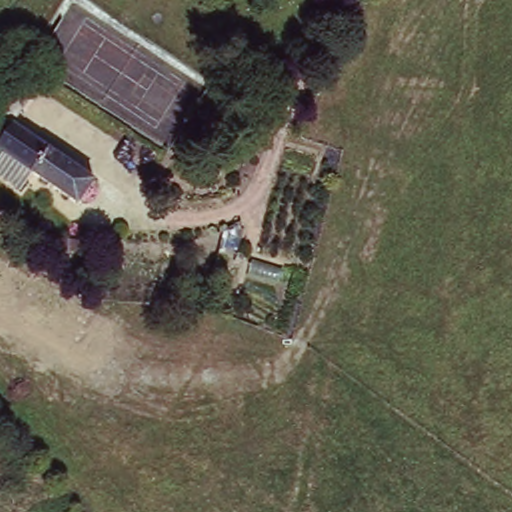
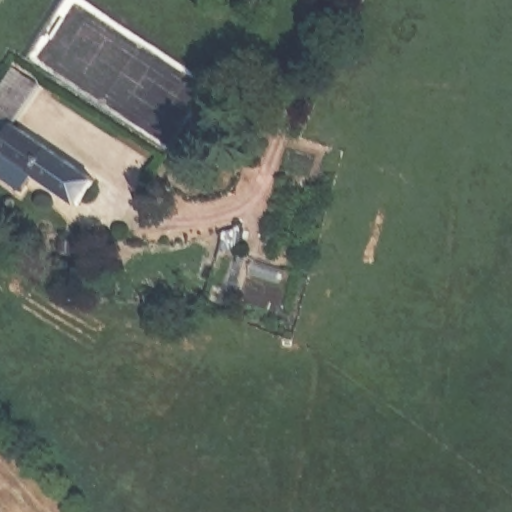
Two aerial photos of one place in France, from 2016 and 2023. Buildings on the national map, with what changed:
unchanged [(0,158),(7,148),(0,143),(0,89),(16,64),(42,82),(17,120),(100,175),(82,199),(36,167),(25,185),(0,166),(0,158)]

